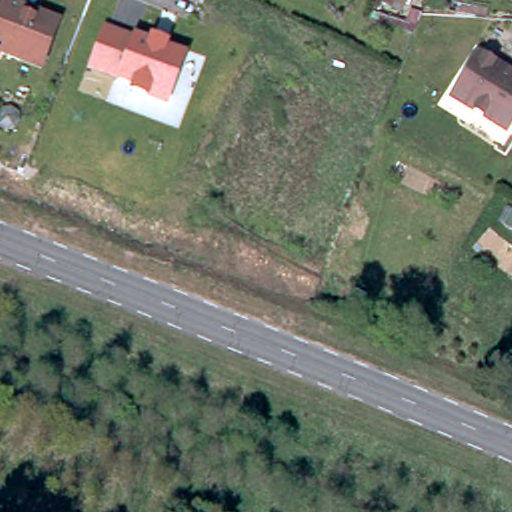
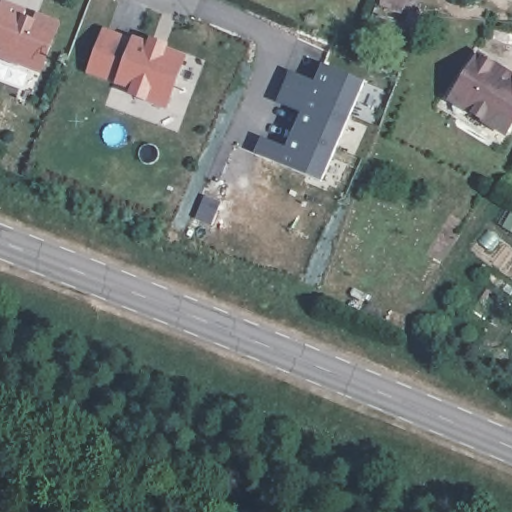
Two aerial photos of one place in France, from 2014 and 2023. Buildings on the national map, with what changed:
unchanged [(5,0),(61,21),(42,71),(0,57),(0,6),(3,0),(5,0)]
unchanged [(407,0),(402,11),(385,0),(435,0),(432,7),(407,0)]
unchanged [(104,27),(134,37),(148,42),(151,34),(169,42),(168,49),(190,56),(168,108),(132,96),(133,88),(120,85),(88,71),(104,27)]
unchanged [(452,88),(477,50),(495,61),(492,65),(508,76),(511,72),(512,73),(512,116),(504,129),(457,101),(448,95),(452,88)]
new [(317,81),(323,64),(365,83),(323,181),(257,153),(263,136),(288,145),(302,111),(278,101),(290,70),(317,81)]

